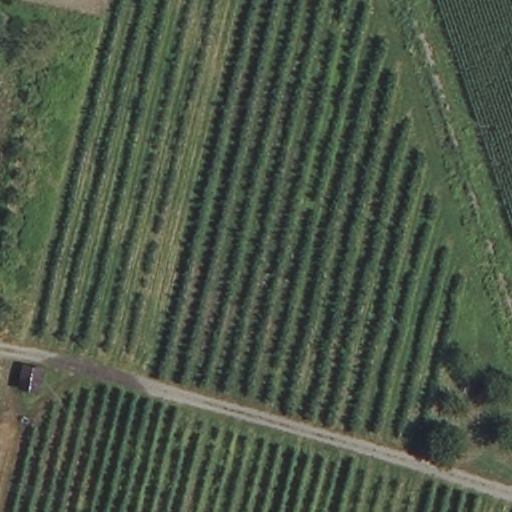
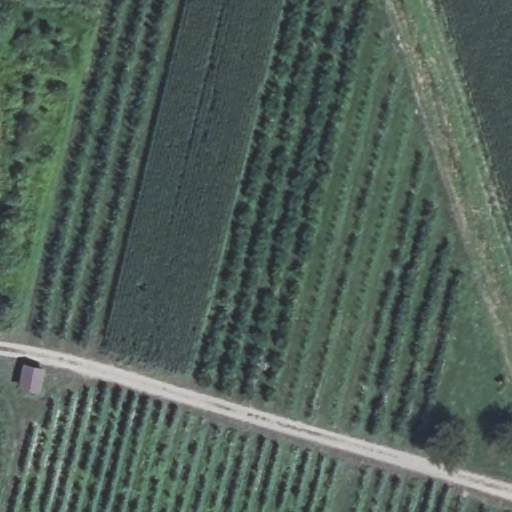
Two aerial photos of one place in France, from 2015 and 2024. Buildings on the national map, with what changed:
unchanged [(50,369),(45,391),(32,387),(37,365),(50,369)]

